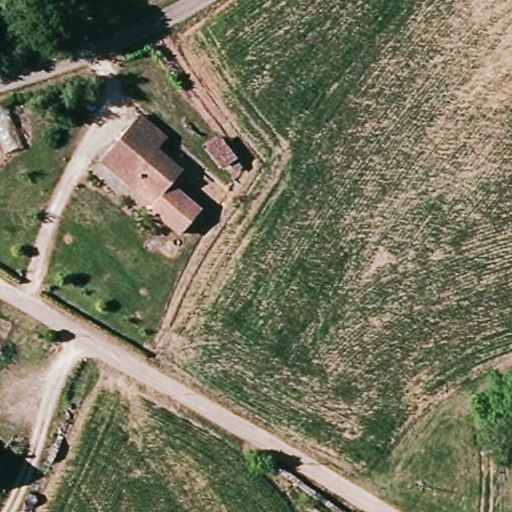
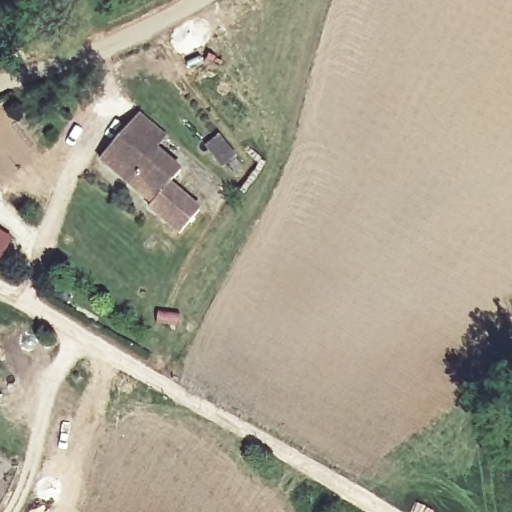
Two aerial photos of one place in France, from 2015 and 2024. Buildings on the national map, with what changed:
unchanged [(169,181),(200,207),(179,231),(150,205),(153,201),(99,156),(126,122),(136,111),(164,134),(155,146),(180,167),(169,181)]
new [(1,200),(0,200),(0,199),(1,200)]
new [(0,261),(0,229),(15,237),(0,261)]

